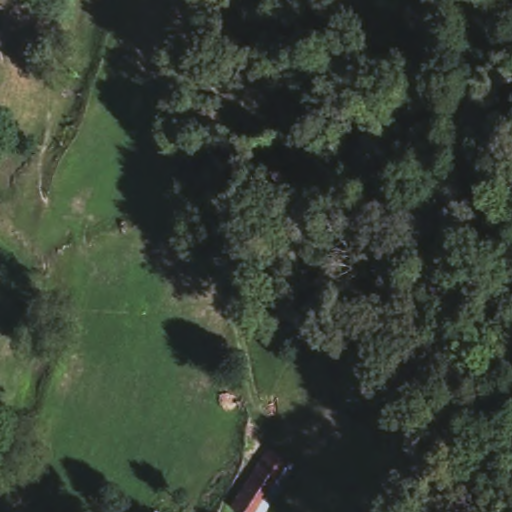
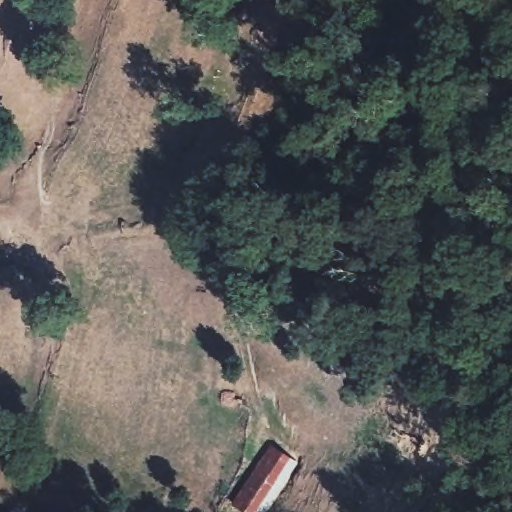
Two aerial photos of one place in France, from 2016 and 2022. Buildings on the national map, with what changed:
unchanged [(244,512),(229,501),(252,468),(270,443),(300,463),(265,512),(244,512)]

